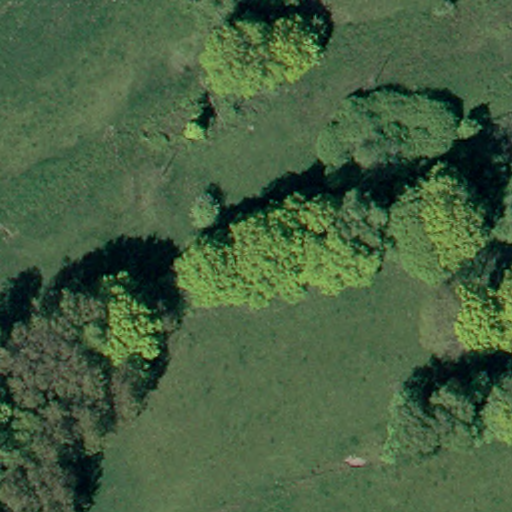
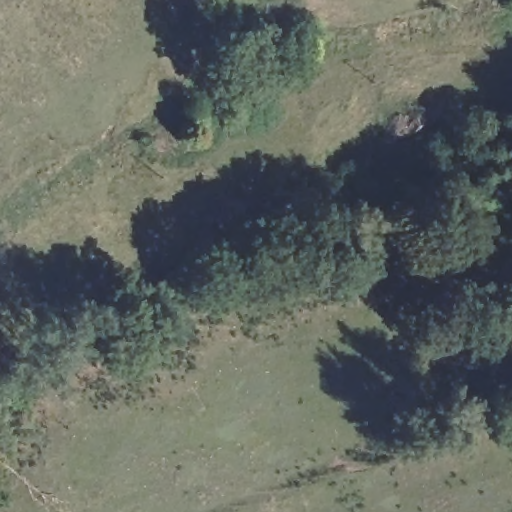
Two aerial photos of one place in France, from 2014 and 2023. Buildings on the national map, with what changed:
[]

